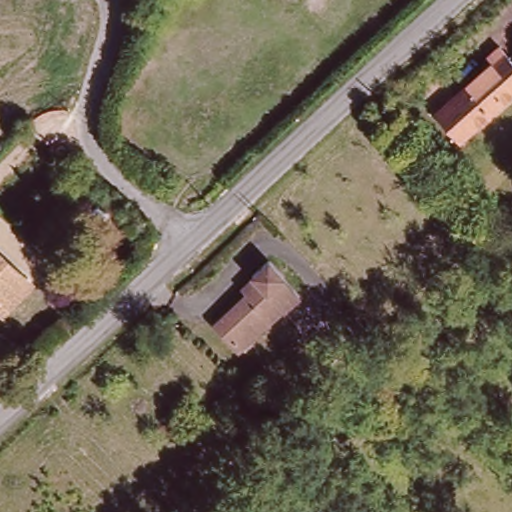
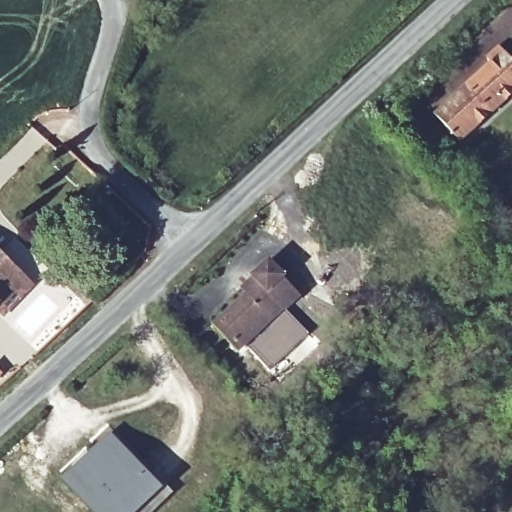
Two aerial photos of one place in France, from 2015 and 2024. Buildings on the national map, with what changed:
unchanged [(512,102),(465,149),(441,125),(493,74),(488,69),(501,57),(512,68),(512,102)]
unchanged [(26,281),(36,293),(7,319),(0,312),(0,255),(26,281)]
unchanged [(259,287),(254,282),(268,268),(301,303),(240,363),(212,334),(259,287)]
new [(164,490),(140,512),(90,512),(62,481),(111,435),(164,490)]

